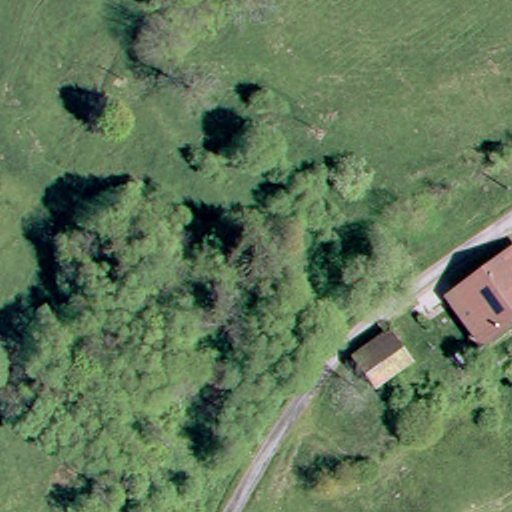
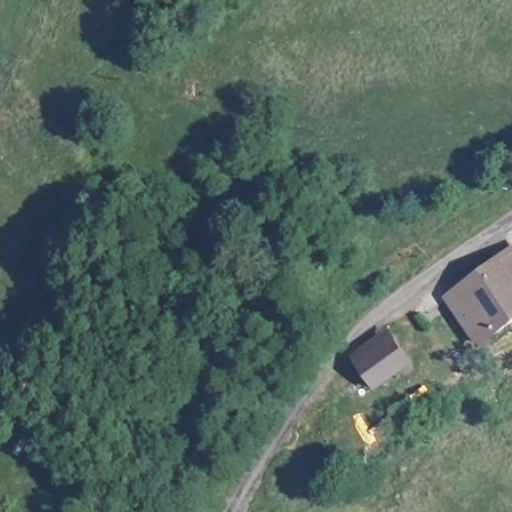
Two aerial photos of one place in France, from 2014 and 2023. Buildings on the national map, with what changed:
unchanged [(483,348),(453,311),(450,302),(512,258),(512,326),(483,348)]
unchanged [(362,369),(399,342),(419,367),(382,393),(362,369)]

